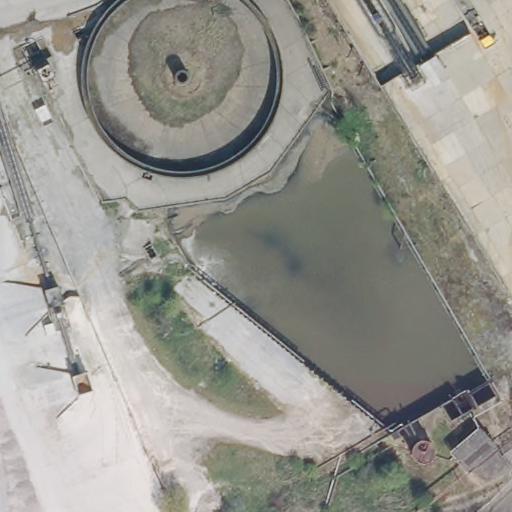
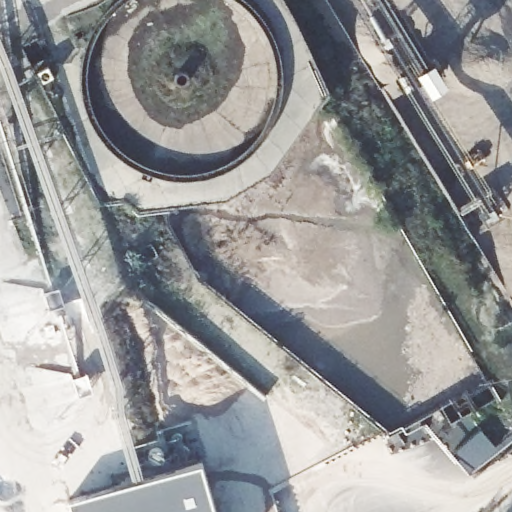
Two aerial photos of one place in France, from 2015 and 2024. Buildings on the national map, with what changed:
unchanged [(495,448),(471,473),(446,453),(477,428),(495,448)]
new [(201,462),(216,512),(73,512),(70,499),(201,462)]

